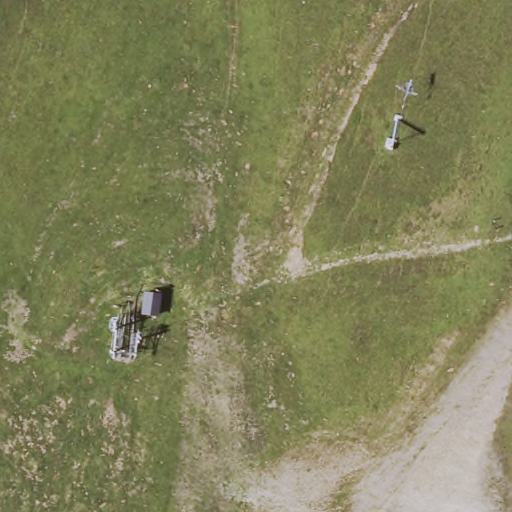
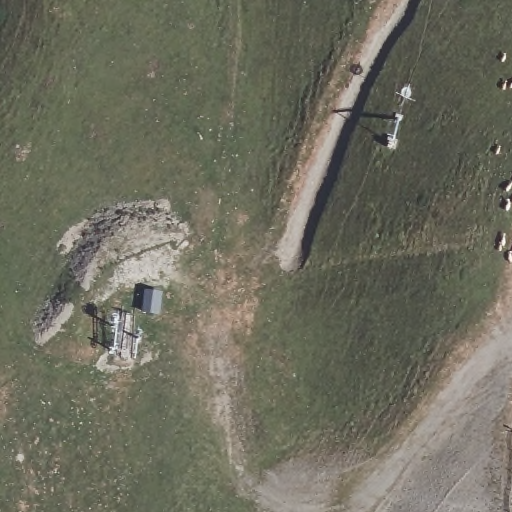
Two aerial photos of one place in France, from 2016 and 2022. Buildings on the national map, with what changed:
unchanged [(166,297),(163,318),(138,315),(142,285),(167,288),(166,297)]

